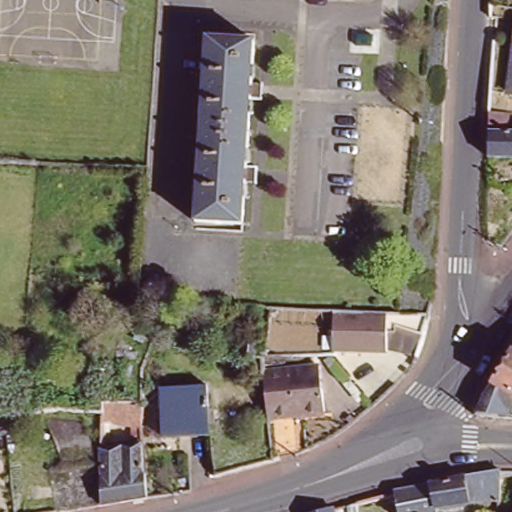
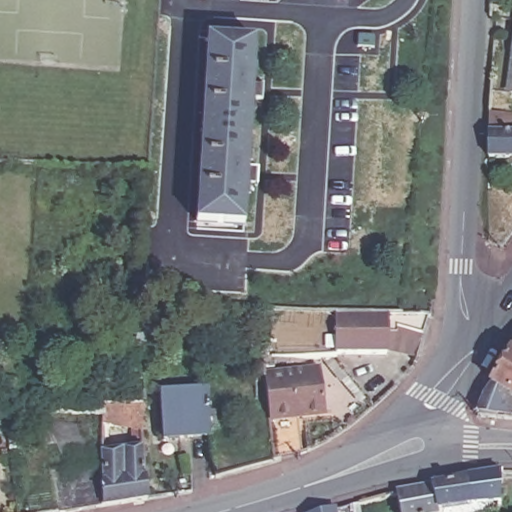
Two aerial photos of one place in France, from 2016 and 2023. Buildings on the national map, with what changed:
unchanged [(236,231),(188,229),(198,36),(245,37),(236,231)]
unchanged [(512,42),(512,93),(504,92),(512,42)]
unchanged [(490,118),(490,111),(512,113),(512,157),(489,156),(490,118)]
unchanged [(384,322),(392,322),(413,327),(407,346),(384,346),(385,350),(330,350),(332,310),(384,312),(384,322)]
unchanged [(488,389),(510,350),(512,347),(512,391),(508,389),(497,412),(482,412),(478,407),(488,389)]
unchanged [(315,363),(320,406),(293,408),(298,446),(285,450),(275,450),(270,412),(265,412),(260,369),(315,363)]
unchanged [(134,383),(135,364),(147,365),(145,383),(134,383)]
unchanged [(212,435),(163,437),(161,389),(209,387),(212,435)]
unchanged [(145,403),(142,428),(122,427),(121,447),(144,446),(150,501),(106,508),(105,462),(105,415),(105,403),(145,403)]
unchanged [(0,429),(0,416),(9,415),(23,414),(25,434),(11,435),(0,436),(0,429)]
unchanged [(50,420),(87,423),(95,447),(98,463),(71,470),(50,420)]
unchanged [(52,472),(71,470),(98,463),(105,462),(106,508),(81,512),(58,512),(52,472)]
unchanged [(484,468),(488,468),(492,467),(497,468),(495,503),(464,501),(432,508),(426,481),(466,472),(484,468)]
unchanged [(418,482),(426,481),(432,508),(433,512),(396,512),(393,488),(418,482)]
unchanged [(37,510),(44,508),(44,512),(37,512),(37,510)]
unchanged [(338,510),(339,512),(329,512),(338,510)]

